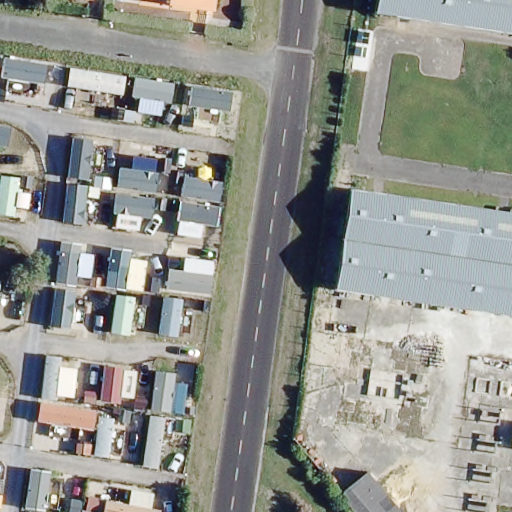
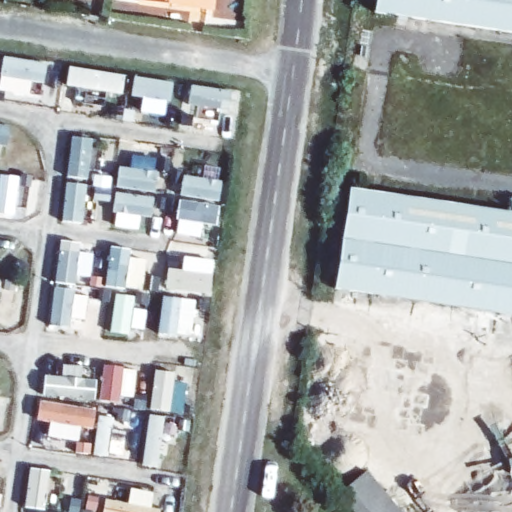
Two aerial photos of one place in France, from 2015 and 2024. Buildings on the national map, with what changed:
unchanged [(133,0),(134,0),(213,0),(211,12),(133,0)]
unchanged [(375,0),(512,0),(512,30),(374,10),(375,0)]
unchanged [(512,310),(338,284),(353,182),(512,206),(512,310)]
unchanged [(367,466),(405,512),(376,512),(350,480),(367,466)]
unchanged [(350,480),(376,512),(355,512),(337,491),(350,480)]

